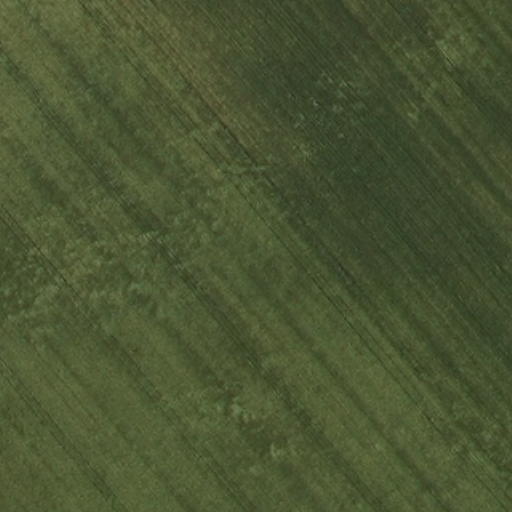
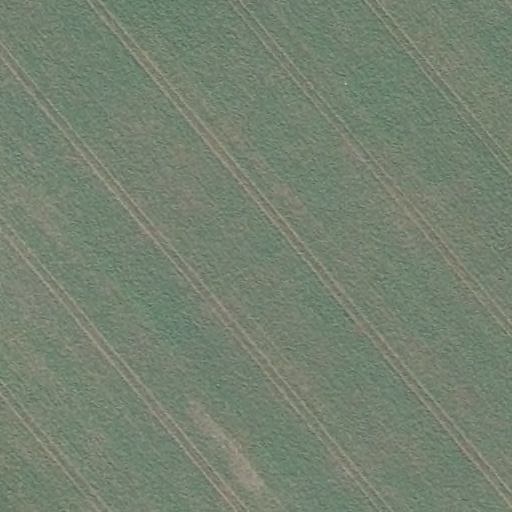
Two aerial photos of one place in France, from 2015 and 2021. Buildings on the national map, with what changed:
[]

